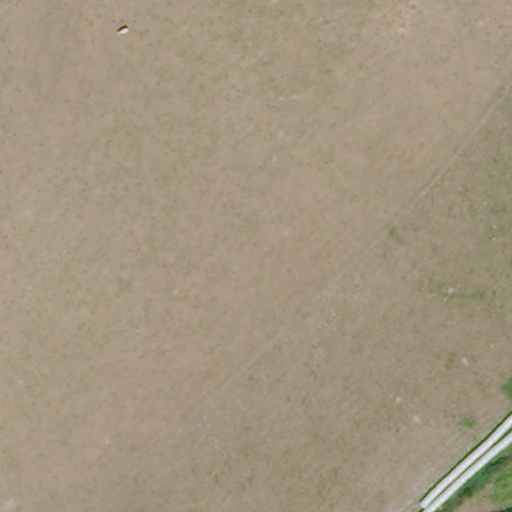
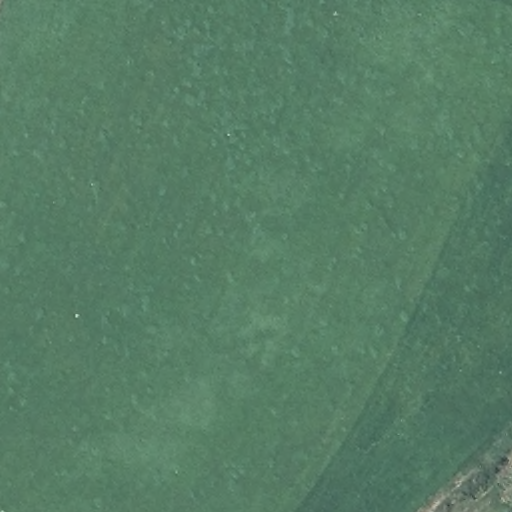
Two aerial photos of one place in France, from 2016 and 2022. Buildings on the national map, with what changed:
[]

